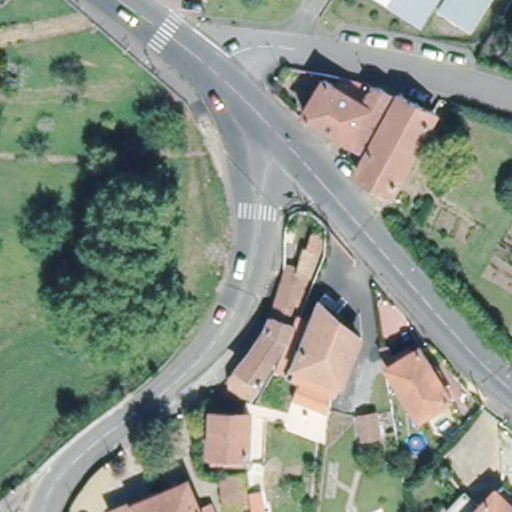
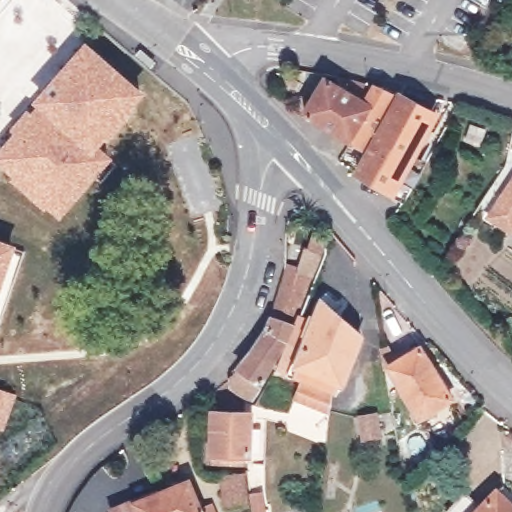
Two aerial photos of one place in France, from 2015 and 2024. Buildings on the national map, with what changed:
demolished [(382,0),(391,0),(388,4),(382,0)]
demolished [(439,0),(423,25),(388,4),(391,0),(439,0)]
demolished [(439,15),(448,0),(493,0),(471,34),(439,15)]
new [(16,131),(11,127),(27,108),(32,111),(39,105),(33,100),(86,40),(146,92),(135,106),(137,109),(110,140),(107,139),(101,146),(114,156),(63,217),(46,200),(41,206),(12,181),(16,176),(0,161),(0,150),(16,131)]
unchanged [(345,141),(299,114),(320,79),(332,85),(336,79),(377,89),(376,90),(393,99),(364,152),(345,141)]
unchanged [(352,174),(364,152),(393,99),(396,95),(431,114),(411,150),(418,154),(409,170),(403,166),(387,194),(352,174)]
new [(488,215),(512,180),(512,226),(509,230),(488,215)]
new [(17,244),(15,250),(22,252),(0,320),(0,238),(17,244)]
unchanged [(314,269),(298,323),(258,391),(248,385),(255,373),(242,364),(263,338),(274,321),(292,262),(314,269)]
unchanged [(294,340),(301,328),(307,313),(320,318),(327,300),(353,322),(364,332),(345,380),(344,380),(339,378),(335,385),(299,371),(282,365),(294,340)]
unchanged [(457,395),(425,415),(392,361),(425,341),(457,395)]
demolished [(394,391),(379,395),(373,365),(388,362),(394,391)]
unchanged [(337,387),(334,407),(297,393),(305,374),(337,387)]
new [(0,429),(0,388),(17,393),(3,430),(0,429)]
unchanged [(249,455),(211,455),(211,415),(250,415),(249,455)]
unchanged [(379,437),(362,440),(359,418),(376,416),(379,437)]
unchanged [(249,504),(227,507),(223,477),(245,474),(249,504)]
unchanged [(184,480),(197,512),(163,512),(155,492),(184,480)]
unchanged [(163,512),(108,512),(107,510),(155,492),(163,512)]
unchanged [(497,495),(512,510),(512,512),(481,512),(497,495)]
unchanged [(465,500),(478,512),(453,512),(465,500)]

